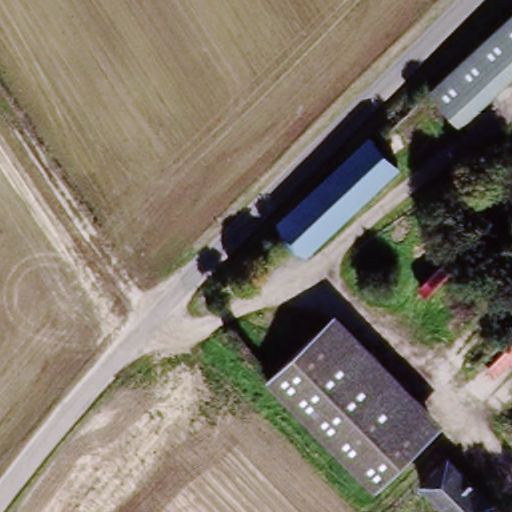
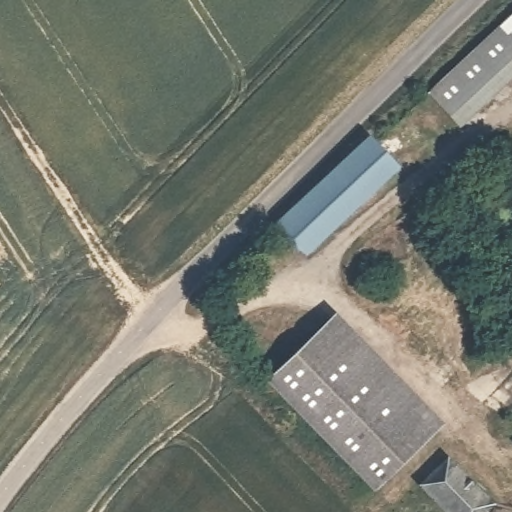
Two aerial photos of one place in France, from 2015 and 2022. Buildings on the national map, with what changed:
unchanged [(459,124),(432,92),(512,19),(512,76),(459,124)]
unchanged [(374,136),(404,170),(313,255),(284,220),(374,136)]
unchanged [(267,385),(341,317),(442,425),(372,492),(267,385)]
unchanged [(492,509),(488,512),(444,512),(422,487),(450,462),(492,509)]

